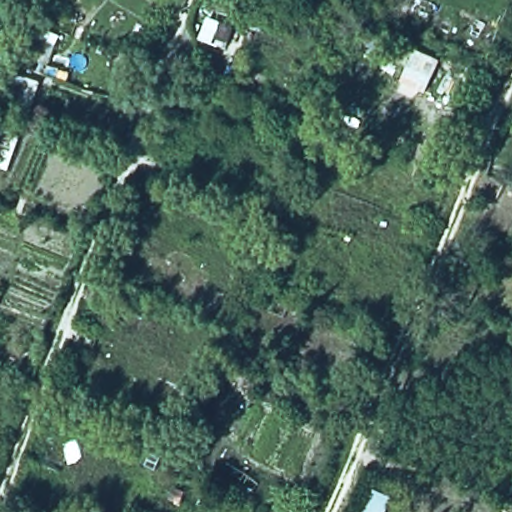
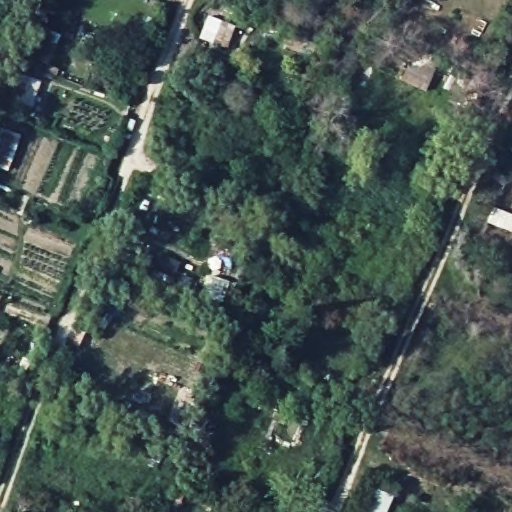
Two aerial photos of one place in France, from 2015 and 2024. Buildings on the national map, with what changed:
unchanged [(44,81),(35,105),(2,94),(10,68),(44,81)]
unchanged [(45,351),(37,371),(15,362),(20,342),(45,351)]
unchanged [(389,512),(358,512),(370,480),(396,495),(389,512)]

